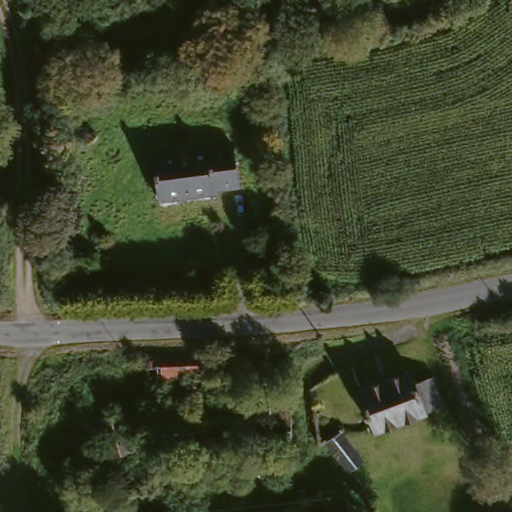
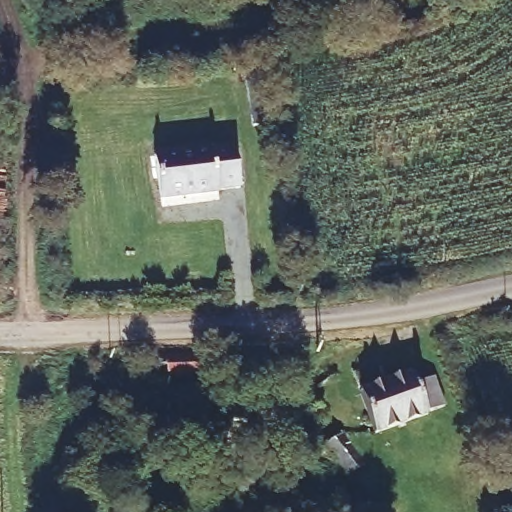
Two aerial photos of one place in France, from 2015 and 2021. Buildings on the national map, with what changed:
unchanged [(236,141),(242,185),(162,197),(155,150),(236,141)]
unchanged [(145,357),(206,352),(233,345),(234,368),(207,375),(150,379),(145,357)]
unchanged [(410,368),(428,408),(380,428),(362,388),(410,368)]
unchanged [(277,379),(281,413),(290,415),(293,442),(252,441),(252,411),(265,410),(260,384),(277,379)]
unchanged [(171,411),(172,391),(214,391),(227,392),(229,409),(252,411),(252,441),(232,441),(233,452),(214,453),(215,442),(189,439),(158,439),(154,410),(171,411)]
unchanged [(135,447),(107,451),(100,416),(127,411),(135,447)]
unchanged [(338,476),(337,468),(331,466),(316,443),(332,435),(337,439),(357,460),(347,467),(338,476)]

